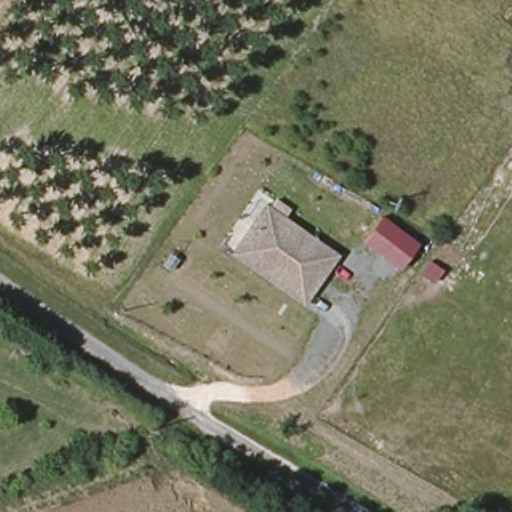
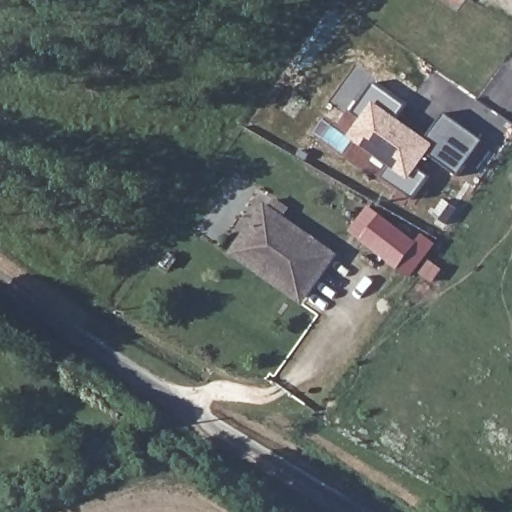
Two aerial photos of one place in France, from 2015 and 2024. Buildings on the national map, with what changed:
new [(454,0),(462,0),(459,4),(454,0)]
new [(428,155),(418,170),(429,177),(414,199),(381,176),(389,166),(349,136),(361,119),(353,114),(375,84),(405,106),(398,117),(428,139),(446,115),(483,141),(458,176),(428,155)]
unchanged [(238,241),(260,210),(326,255),(296,298),(263,275),(230,252),(238,241)]
new [(398,269),(361,240),(381,215),(418,244),(398,269)]

